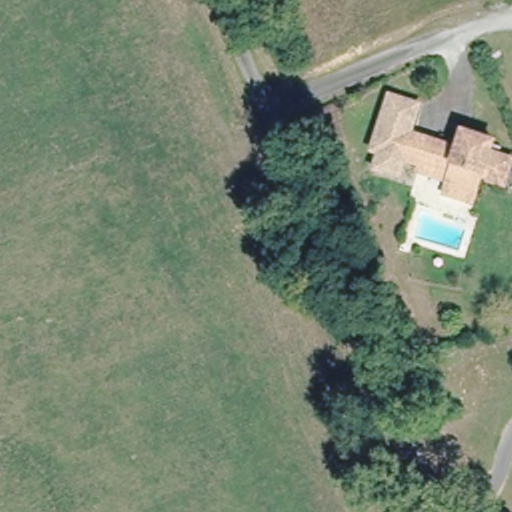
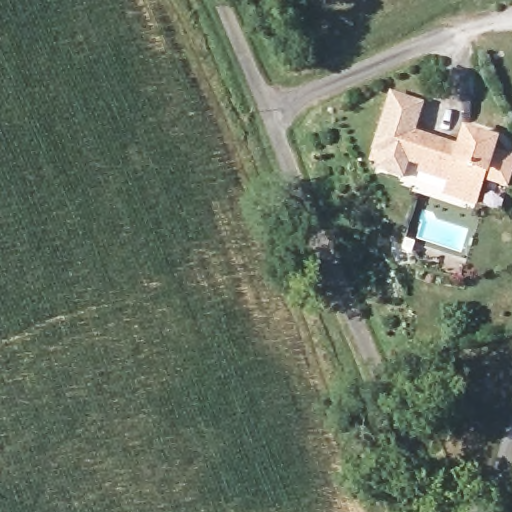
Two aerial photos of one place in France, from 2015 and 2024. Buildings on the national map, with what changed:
unchanged [(447,192),(449,187),(434,183),(421,179),(424,166),(410,161),(406,177),(381,168),(386,153),(379,151),(389,124),(399,96),(427,105),(418,134),(464,150),(469,136),(501,146),(499,153),(512,157),(512,197),(484,187),(479,202),(476,215),(443,204),(447,192)]

